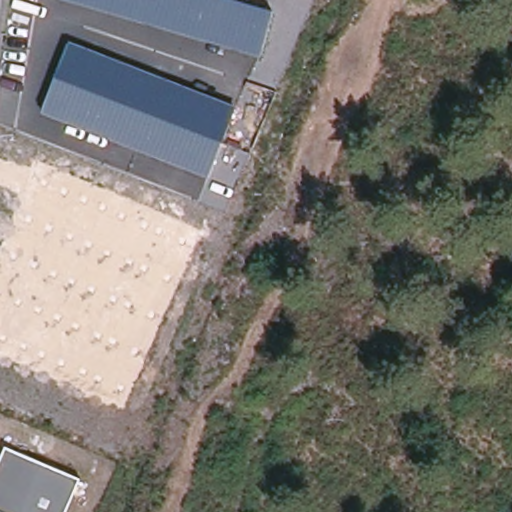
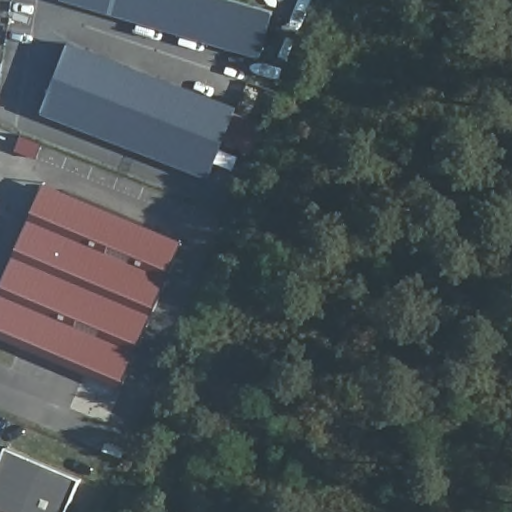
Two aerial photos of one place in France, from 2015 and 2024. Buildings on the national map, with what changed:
unchanged [(60,0),(231,0),(272,12),(260,59),(60,0)]
unchanged [(209,179),(40,113),(68,41),(236,107),(209,179)]
new [(120,388),(0,337),(0,289),(45,181),(182,240),(120,388)]
unchanged [(78,480),(64,512),(0,512),(0,456),(3,448),(78,480)]

